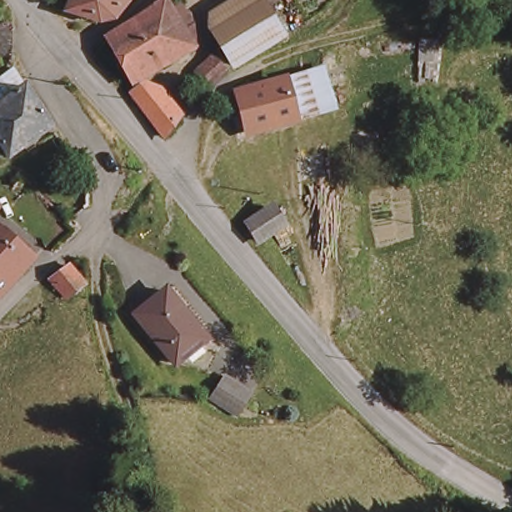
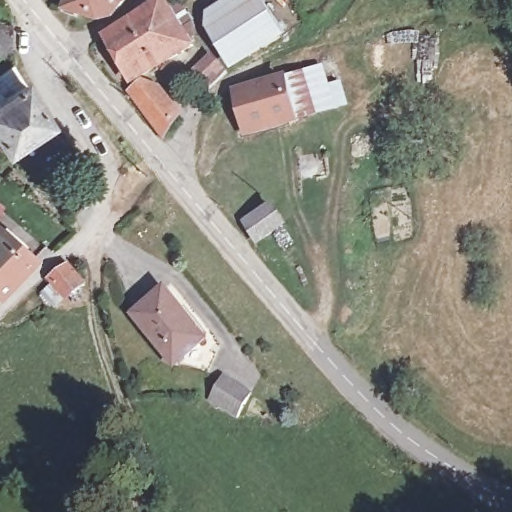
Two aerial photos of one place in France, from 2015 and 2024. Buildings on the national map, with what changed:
unchanged [(120,27),(72,19),(87,0),(124,0),(130,4),(120,27)]
unchanged [(124,0),(131,0),(130,4),(124,0)]
unchanged [(240,0),(251,0),(274,34),(233,63),(215,33),(207,22),(240,0)]
unchanged [(196,52),(130,89),(108,40),(170,9),(196,52)]
unchanged [(12,45),(0,45),(0,18),(11,18),(12,45)]
unchanged [(213,53),(225,70),(210,87),(194,63),(213,53)]
unchanged [(334,109),(247,141),(236,101),(323,63),(334,109)]
unchanged [(0,91),(18,77),(38,99),(53,125),(12,158),(0,142),(0,122),(12,115),(0,101),(0,91)]
unchanged [(150,92),(167,82),(186,113),(170,123),(150,92)]
unchanged [(279,232),(263,245),(246,226),(268,207),(285,227),(279,232)]
unchanged [(0,233),(31,263),(6,290),(0,284),(0,233)]
unchanged [(82,286),(62,305),(45,285),(67,268),(82,286)]
unchanged [(181,361),(138,316),(167,290),(209,336),(181,361)]
unchanged [(257,393),(235,422),(207,400),(229,372),(257,393)]

